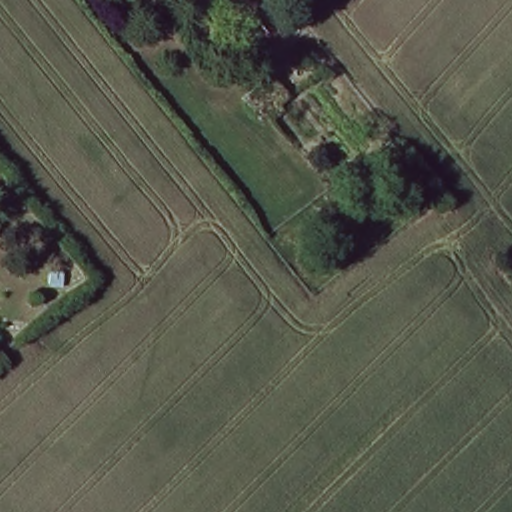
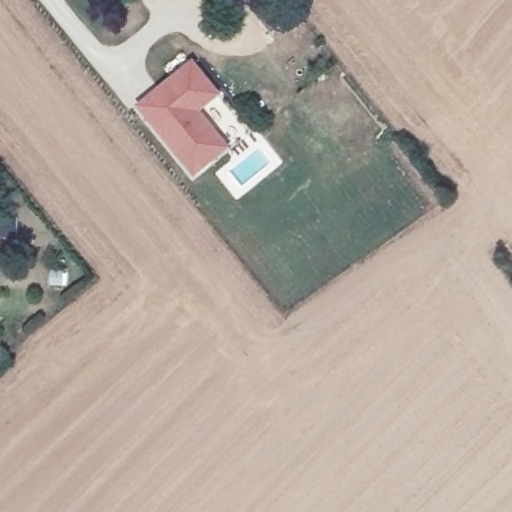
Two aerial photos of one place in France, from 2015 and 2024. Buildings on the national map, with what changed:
unchanged [(268,3),(254,15),(240,0),(265,0),(268,3)]
new [(192,60),(222,95),(200,111),(232,149),(193,179),(135,106),(192,60)]

